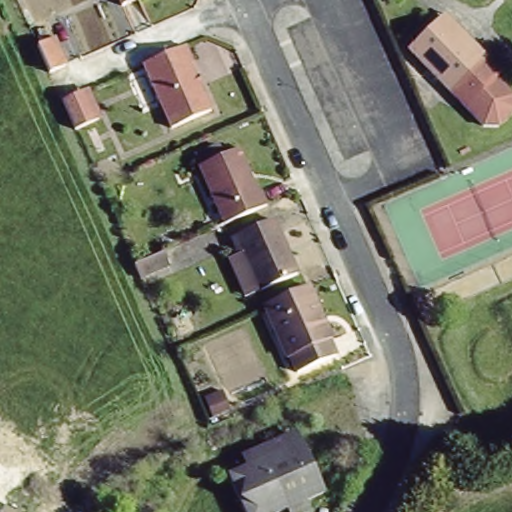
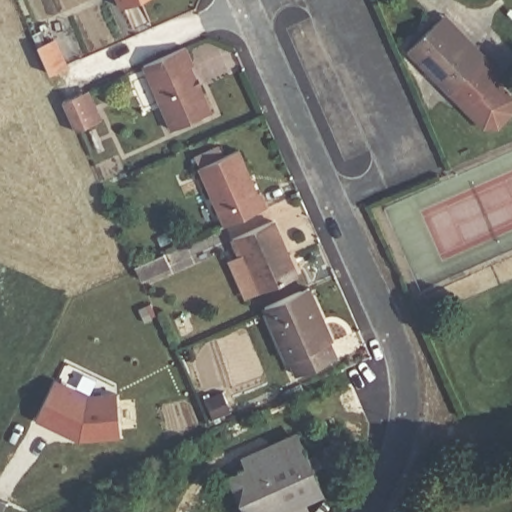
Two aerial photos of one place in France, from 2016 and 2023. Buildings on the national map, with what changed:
unchanged [(118,0),(136,0),(121,6),(118,0)]
unchanged [(407,51),(436,23),(444,15),(493,66),(475,83),(468,76),(450,95),(407,51)]
unchanged [(64,62),(48,69),(35,41),(52,34),(64,62)]
unchanged [(210,113),(170,130),(160,107),(143,69),(142,65),(185,47),(192,64),(189,65),(210,113)]
unchanged [(60,99),(87,90),(100,119),(71,132),(60,99)]
unchanged [(260,193),(266,209),(224,227),(198,168),(200,167),(195,156),(217,147),(222,157),(237,150),(257,194),(260,193)]
unchanged [(231,259),(238,256),(230,239),(272,222),(297,277),(248,299),(231,259)]
unchanged [(168,263),(139,276),(133,262),(162,249),(168,263)]
unchanged [(289,361),(287,362),(263,309),(307,289),(331,342),(328,343),(335,359),(296,376),(289,361)]
new [(54,381),(87,398),(116,393),(120,436),(79,439),(78,434),(70,435),(36,419),(54,381)]
unchanged [(227,478),(302,445),(324,497),(288,512),(242,512),(227,478)]

